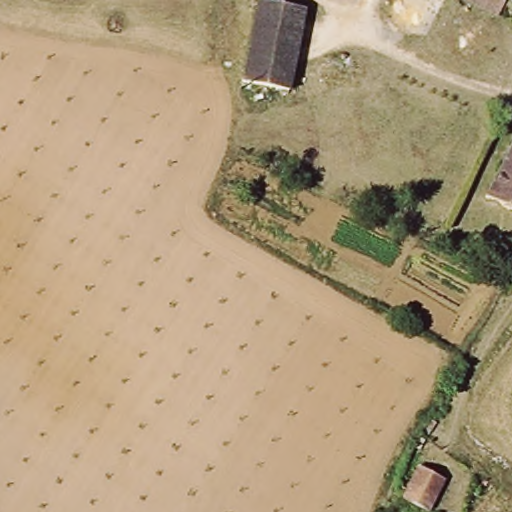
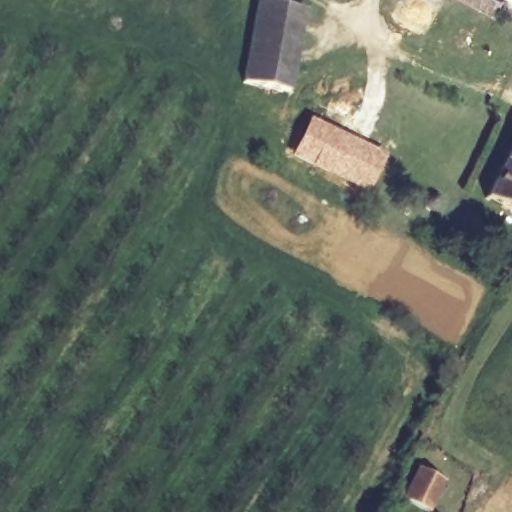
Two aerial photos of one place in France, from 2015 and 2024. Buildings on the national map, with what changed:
unchanged [(245,84),(247,65),(263,0),(265,0),(310,10),(293,94),(245,84)]
new [(308,117),(385,155),(366,191),(290,154),(308,117)]
unchanged [(512,147),(512,204),(486,191),(512,147)]
unchanged [(429,474),(453,485),(443,512),(426,512),(415,507),(429,474)]

